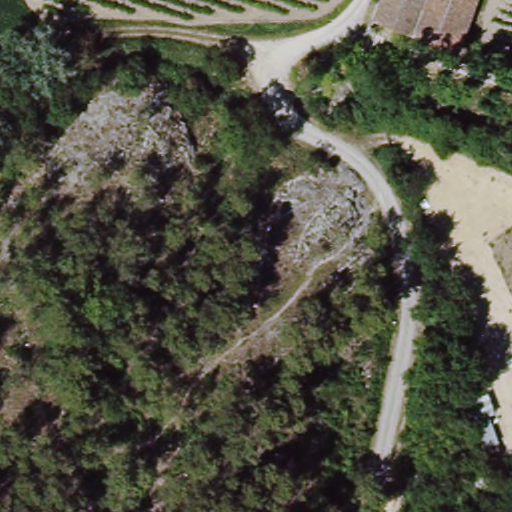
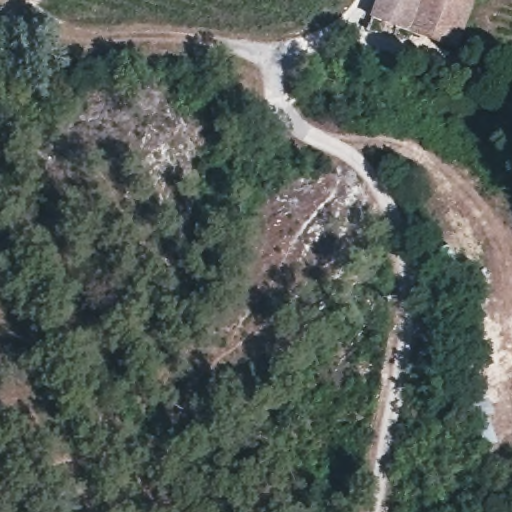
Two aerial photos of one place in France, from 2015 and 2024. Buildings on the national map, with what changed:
unchanged [(437,44),(422,39),(412,35),(376,22),(384,0),(482,0),(465,51),(437,44)]

